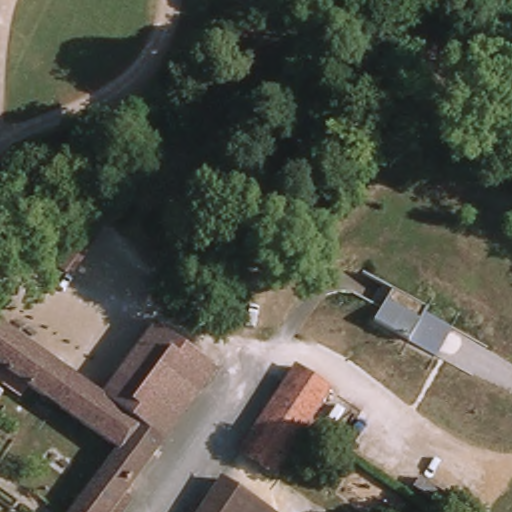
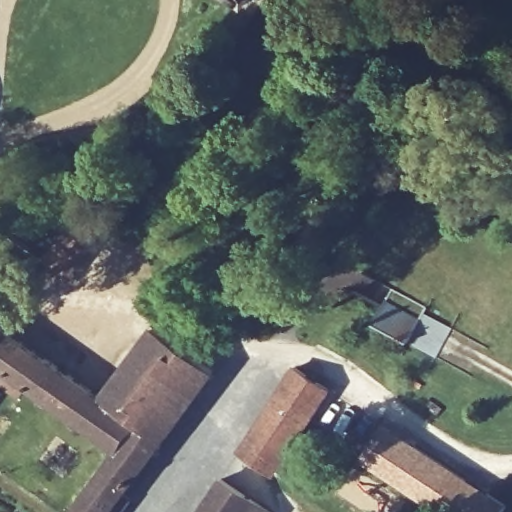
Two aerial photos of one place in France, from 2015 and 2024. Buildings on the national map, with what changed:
unchanged [(70,221),(88,232),(60,271),(42,258),(70,221)]
unchanged [(117,451),(27,387),(20,398),(0,384),(0,326),(1,326),(104,397),(156,327),(217,371),(115,510),(117,512),(90,512),(129,459),(117,451)]
unchanged [(239,447),(295,367),(332,393),(275,472),(239,447)]
unchanged [(0,400),(0,390),(5,393),(0,400)]
new [(501,512),(438,512),(357,458),(384,424),(505,507),(501,512)]
unchanged [(276,512),(198,512),(225,476),(276,512)]

